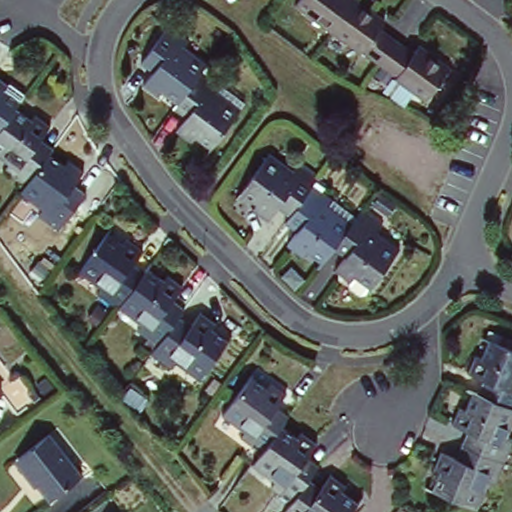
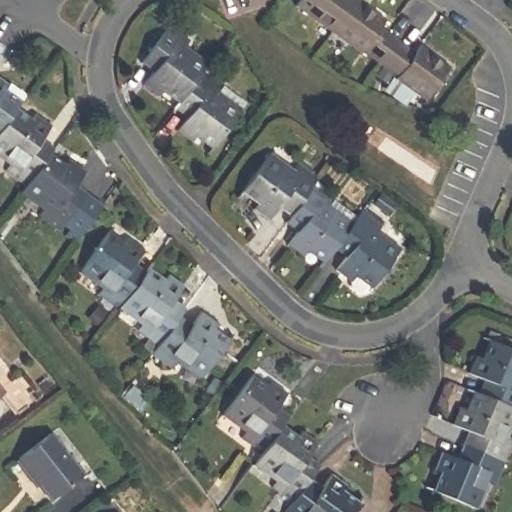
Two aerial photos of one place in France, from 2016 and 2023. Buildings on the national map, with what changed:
unchanged [(390,30),(424,52),(430,44),(459,65),(435,98),(371,52),(370,55),(303,12),(312,0),(359,0),(395,22),(390,30)]
unchanged [(200,72),(176,106),(161,95),(159,99),(140,87),(149,75),(138,67),(168,29),(189,42),(184,50),(207,64),(200,72)]
unchanged [(221,84),(216,92),(236,107),(206,149),(190,137),(187,142),(172,132),(182,118),(172,111),(176,106),(200,72),(221,84)]
unchanged [(20,110),(0,137),(0,75),(13,84),(9,87),(27,101),(20,110)]
unchanged [(50,156),(24,191),(4,177),(9,169),(0,162),(0,137),(20,110),(35,121),(39,116),(53,127),(43,142),(54,151),(50,156)]
unchanged [(310,182),(285,217),(273,209),(264,221),(247,209),(251,202),(238,193),(269,152),(289,166),(294,157),(317,174),(310,182)]
unchanged [(65,167),(68,164),(85,176),(75,190),(87,199),(55,239),(35,224),(40,215),(19,198),(24,191),(50,156),(65,167)]
unchanged [(328,195),(323,204),(349,222),(329,250),(317,266),(298,252),(294,258),(278,246),(288,231),(280,224),(285,217),(310,182),(328,195)]
unchanged [(381,221),(376,229),(399,246),(367,290),(351,277),(346,282),(330,270),(338,257),(329,250),(349,222),(361,207),(381,221)]
unchanged [(116,313),(114,316),(92,299),(98,292),(74,275),(106,234),(122,246),(125,242),(140,253),(130,267),(143,277),(116,313)]
unchanged [(176,322),(152,355),(131,339),(137,330),(116,313),(143,277),(146,273),(160,283),(165,278),(181,291),(171,305),(182,313),(176,322)]
unchanged [(187,330),(196,318),(210,328),(207,333),(225,347),(193,387),(175,373),(171,377),(149,360),(152,355),(176,322),(187,330)]
unchanged [(467,367),(473,350),(479,352),(487,336),(512,347),(512,405),(480,392),(473,388),(478,372),(467,367)]
unchanged [(41,398),(18,416),(3,394),(24,375),(41,398)]
unchanged [(256,459),(253,462),(231,445),(236,437),(215,422),(245,380),(260,391),(262,388),(280,401),(271,413),(283,422),(256,459)]
unchanged [(0,396),(0,391),(3,394),(0,396)]
unchanged [(512,463),(467,445),(473,429),(459,422),(466,404),(474,407),(480,392),(512,405),(512,463)]
unchanged [(315,467),(290,501),(270,486),(277,476),(256,459),(283,422),(286,418),(300,428),(302,425),(318,437),(309,450),(321,459),(315,467)]
unchanged [(87,473),(54,498),(22,457),(54,432),(87,473)]
unchanged [(512,483),(511,487),(499,482),(487,510),(437,488),(443,471),(439,468),(448,450),(463,456),(467,445),(512,463),(512,483)]
unchanged [(329,477),(336,466),(351,476),(348,481),(364,492),(349,512),(292,512),(286,507),(290,501),(315,467),(329,477)]

